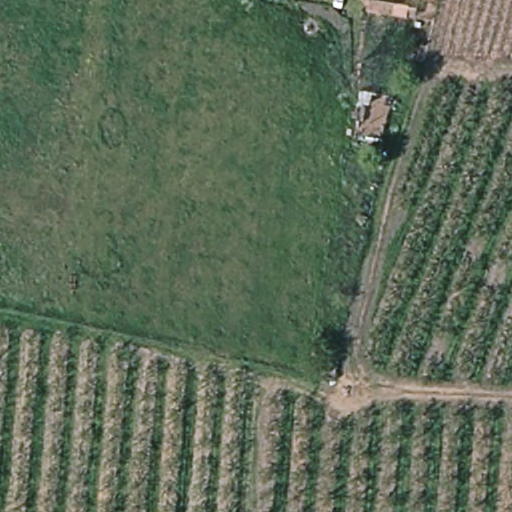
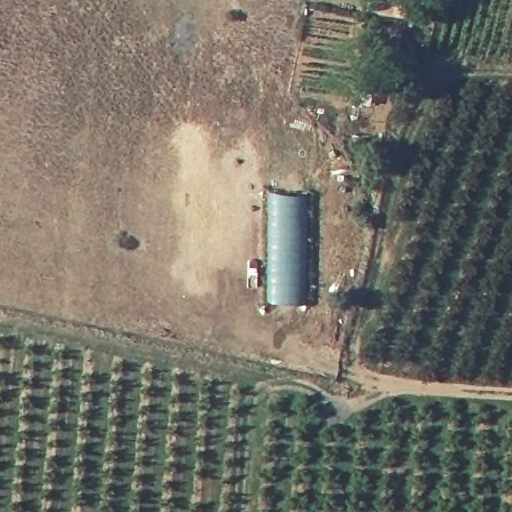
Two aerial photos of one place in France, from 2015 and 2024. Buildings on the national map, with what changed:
unchanged [(410,21),(366,15),(367,0),(372,0),(410,7),(410,21)]
new [(267,300),(267,192),(305,192),(302,302),(267,300)]

